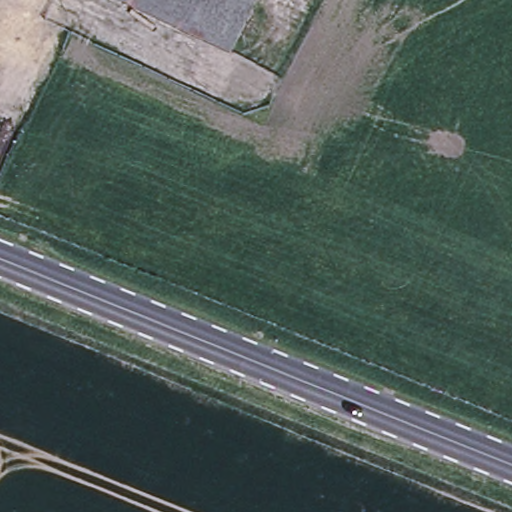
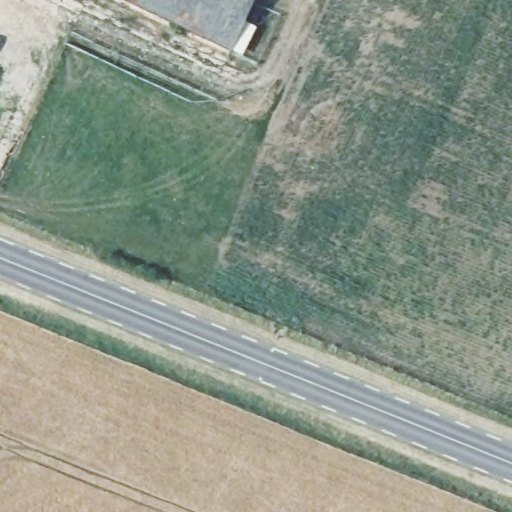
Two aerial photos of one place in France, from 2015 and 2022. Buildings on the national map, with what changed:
unchanged [(129,0),(259,0),(235,50),(129,0)]

